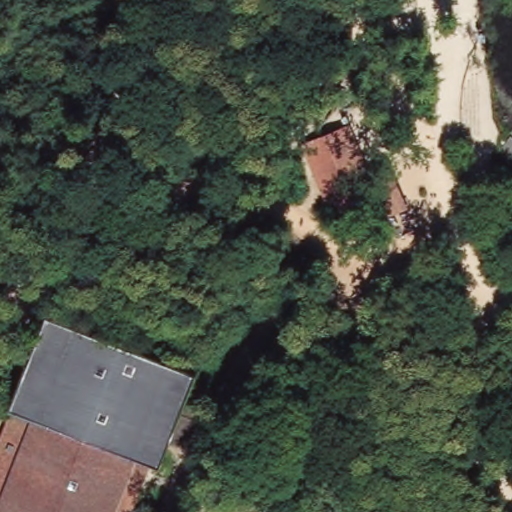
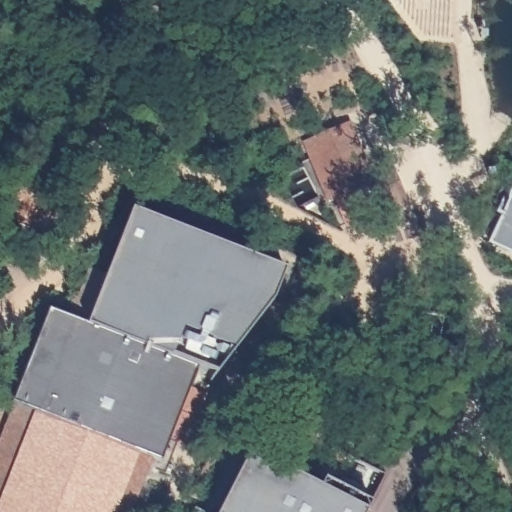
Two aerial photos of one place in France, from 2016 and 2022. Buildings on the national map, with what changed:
unchanged [(349,123),(369,176),(391,168),(408,207),(383,217),(376,199),(330,215),(303,144),(349,123)]
new [(131,211),(282,272),(271,302),(212,375),(195,370),(86,327),(131,211)]
unchanged [(0,454),(0,444),(14,404),(47,312),(195,370),(161,461),(146,504),(124,500),(120,512),(0,512),(0,503),(16,461),(0,454)]
new [(249,453),(320,486),(324,480),(368,503),(363,512),(218,512),(249,453)]
demolished [(282,487),(273,512),(196,512),(212,464),(282,487)]

